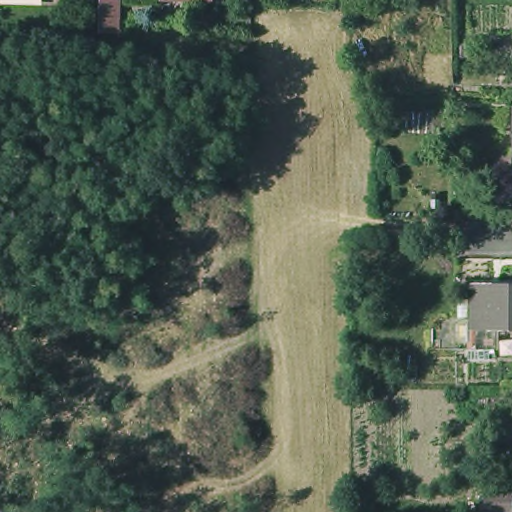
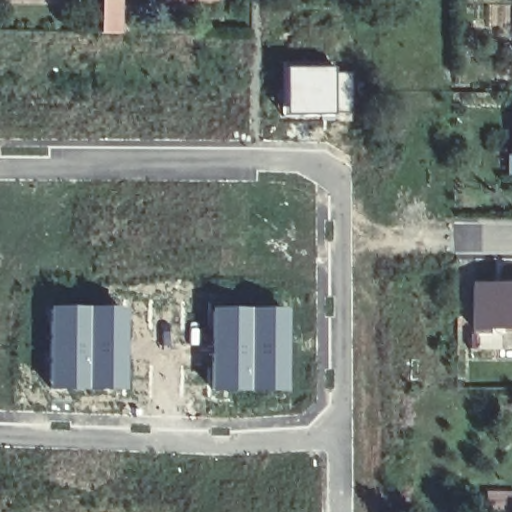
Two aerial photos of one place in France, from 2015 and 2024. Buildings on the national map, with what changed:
unchanged [(101,0),(122,0),(122,34),(101,33),(101,0)]
unchanged [(211,5),(168,5),(168,0),(217,0),(217,5),(211,5)]
new [(331,68),(330,117),(282,117),(280,68),(331,68)]
unchanged [(504,286),(504,280),(512,280),(512,333),(512,328),(469,329),(469,286),(504,286)]
new [(88,309),(122,310),(122,392),(86,390),(50,389),(47,308),(88,309)]
new [(248,310),(284,311),(285,394),(247,395),(212,394),(210,310),(248,310)]

